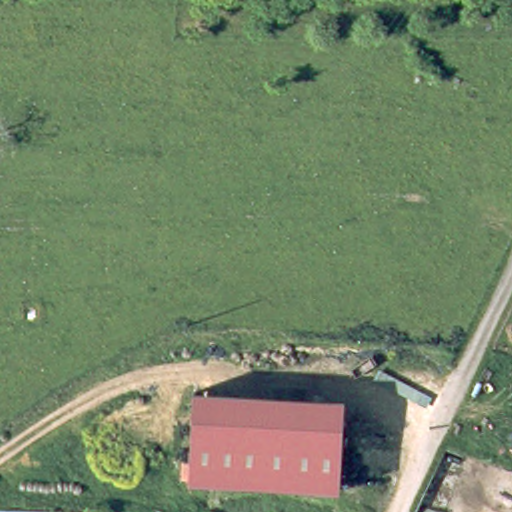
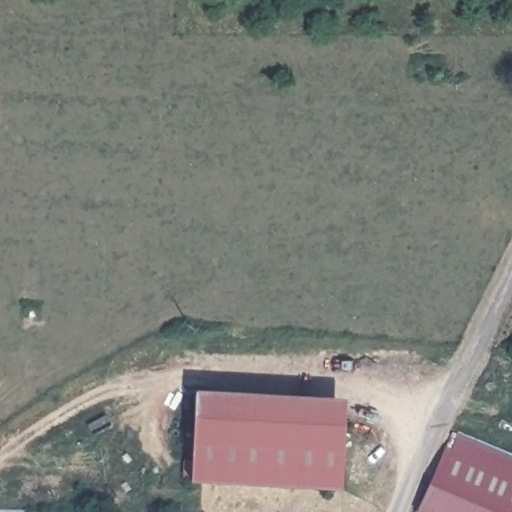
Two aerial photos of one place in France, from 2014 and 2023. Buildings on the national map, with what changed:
unchanged [(187,486),(192,399),(340,406),(335,494),(187,486)]
new [(512,453),(512,512),(417,512),(454,429),(512,453)]
unchanged [(0,512),(0,504),(170,512),(0,512)]

